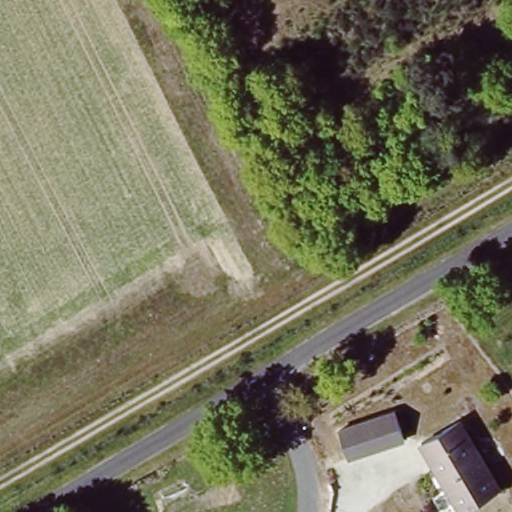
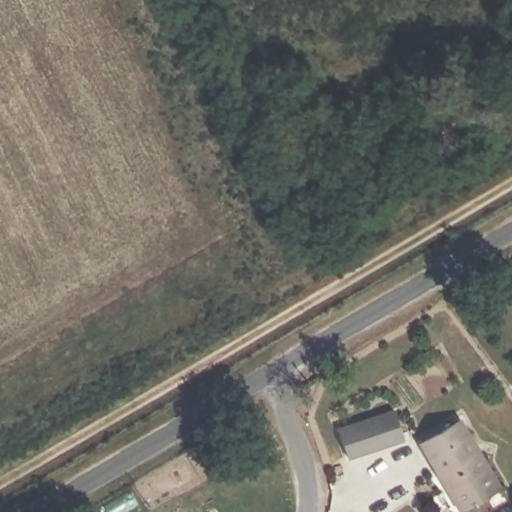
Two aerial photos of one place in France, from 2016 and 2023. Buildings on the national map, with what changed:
unchanged [(395,410),(405,442),(350,461),(339,428),(395,410)]
unchanged [(500,484),(456,510),(418,445),(461,420),(500,484)]

